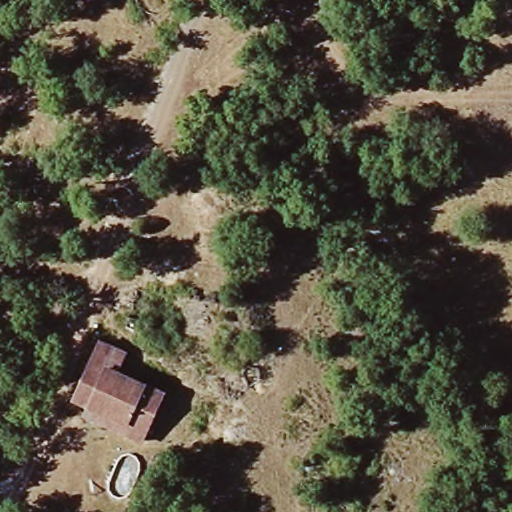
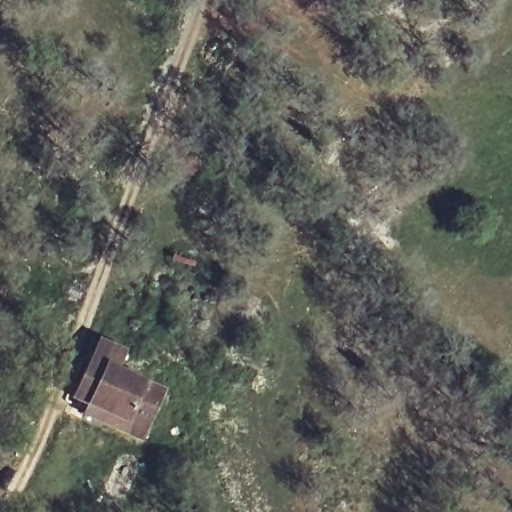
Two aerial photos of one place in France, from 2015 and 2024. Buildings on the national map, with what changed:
unchanged [(127,354),(119,368),(163,392),(136,442),(81,412),(85,402),(71,394),(101,339),(127,354)]

